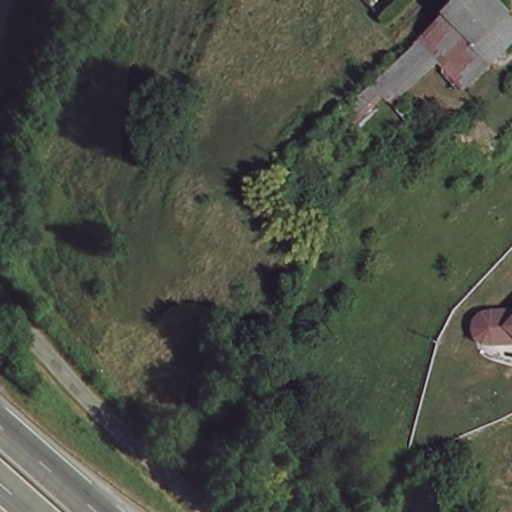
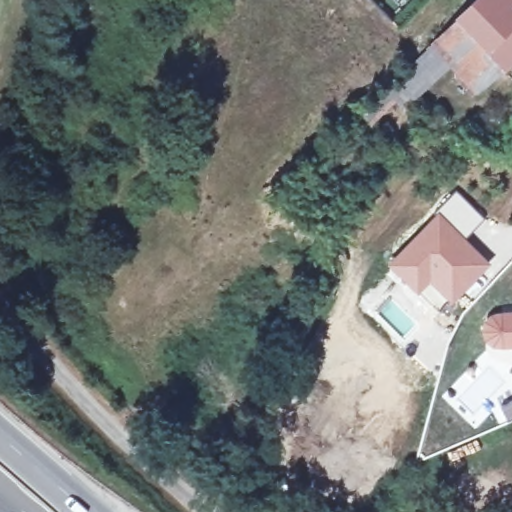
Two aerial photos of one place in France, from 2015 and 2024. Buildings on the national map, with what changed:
unchanged [(512,0),(512,3),(504,10),(512,19),(512,57),(502,67),(460,14),(475,0),(512,0)]
unchanged [(502,67),(477,88),(447,56),(432,39),(460,14),(502,67)]
unchanged [(447,56),(403,94),(390,78),(432,39),(447,56)]
unchanged [(390,78),(403,94),(364,128),(350,111),(390,78)]
new [(456,189),(485,218),(466,238),(437,210),(456,189)]
new [(437,210),(466,238),(490,262),(452,305),(429,284),(419,294),(386,263),(437,210)]
unchanged [(480,309),(512,307),(512,340),(485,343),(480,309)]

